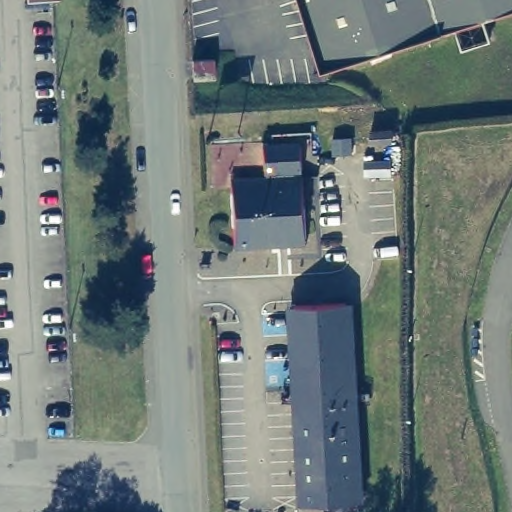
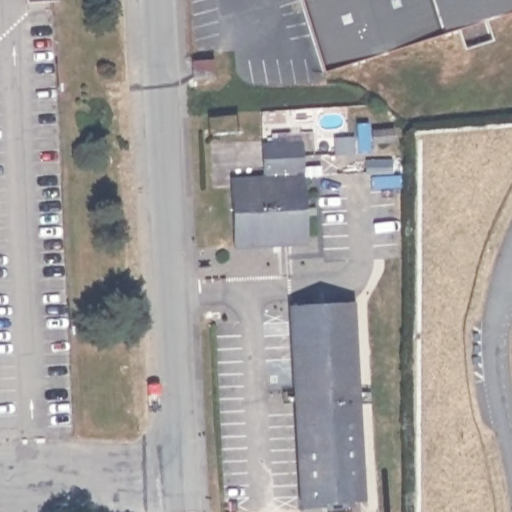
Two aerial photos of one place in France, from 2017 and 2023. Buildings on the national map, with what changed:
unchanged [(28,0),(56,0),(56,1),(28,0)]
unchanged [(299,0),(512,0),(512,8),(321,69),(299,0)]
unchanged [(210,62),(211,84),(194,85),(192,62),(210,62)]
unchanged [(383,151),(382,139),(412,132),(412,149),(383,151)]
unchanged [(305,151),(307,247),(230,249),(231,191),(231,180),(264,179),(264,150),(305,151)]
unchanged [(353,303),(362,499),(296,501),(286,305),(353,303)]

